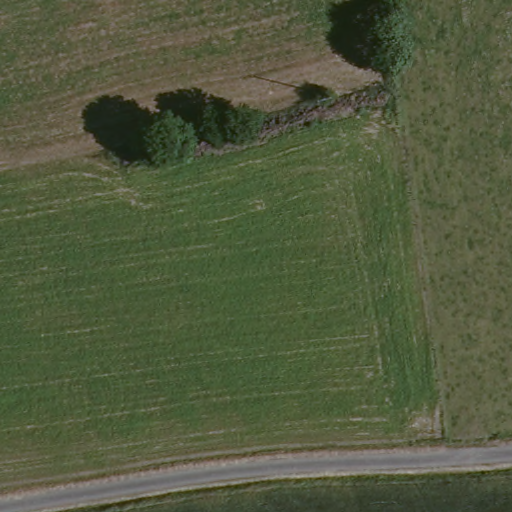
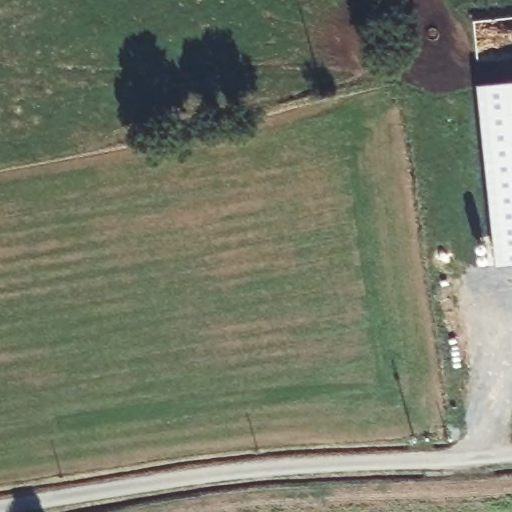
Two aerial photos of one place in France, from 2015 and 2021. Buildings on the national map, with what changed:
new [(512,84),(512,266),(500,267),(479,88),(512,84)]

